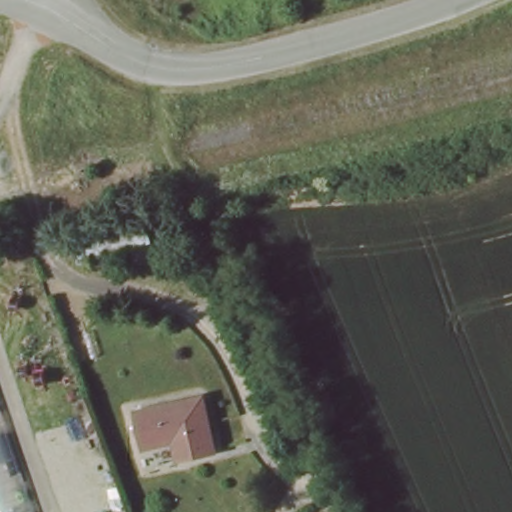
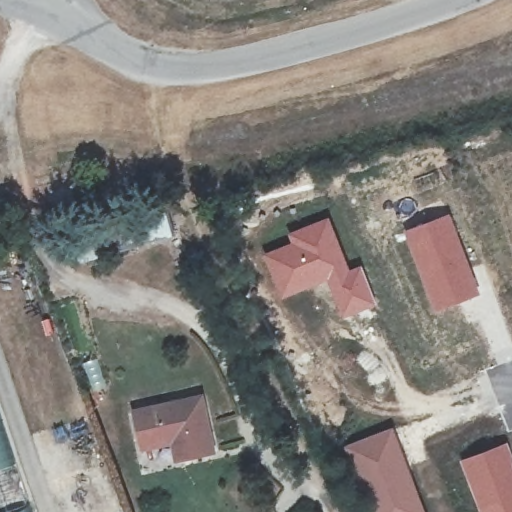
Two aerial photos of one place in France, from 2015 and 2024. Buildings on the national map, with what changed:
new [(450,213),(481,295),(433,314),(403,231),(450,213)]
new [(290,243),(287,233),(329,217),(350,269),(361,265),(377,305),(340,320),(326,282),(280,301),(262,255),(290,243)]
unchanged [(144,446),(139,423),(136,410),(202,395),(203,398),(214,449),(185,456),(181,456),(178,457),(174,439),(144,446)]
unchanged [(29,512),(0,512),(0,422),(29,512)]
new [(393,427),(425,512),(366,512),(356,487),(342,446),(393,427)]
new [(512,453),(512,512),(478,512),(458,460),(508,442),(512,453)]

